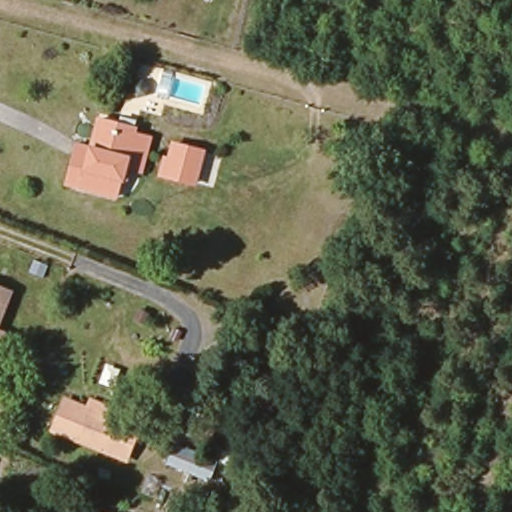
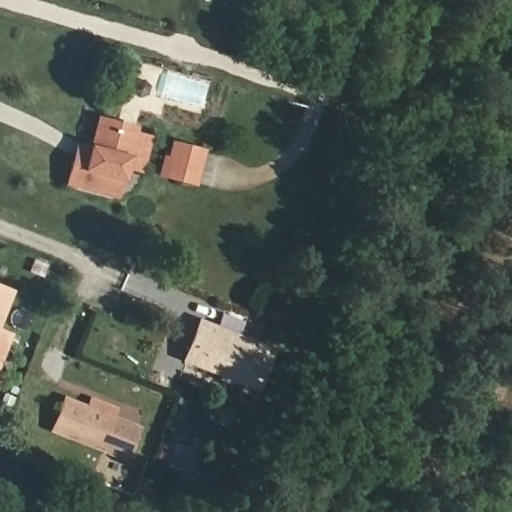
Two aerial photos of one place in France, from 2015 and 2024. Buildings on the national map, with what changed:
unchanged [(165,139),(154,169),(139,165),(126,208),(66,187),(78,148),(94,152),(106,115),(165,139)]
unchanged [(195,188),(158,179),(161,162),(166,164),(175,145),(205,153),(195,188)]
unchanged [(0,288),(14,294),(0,330),(0,288)]
new [(196,321),(268,350),(253,387),(181,358),(196,321)]
unchanged [(0,364),(0,332),(13,336),(0,364)]
unchanged [(78,427),(59,421),(71,388),(143,419),(131,450),(77,430),(78,427)]
unchanged [(131,450),(125,466),(71,448),(77,430),(131,450)]
unchanged [(217,461),(208,484),(170,467),(177,446),(217,461)]
unchanged [(99,512),(100,511),(102,512),(99,512)]

